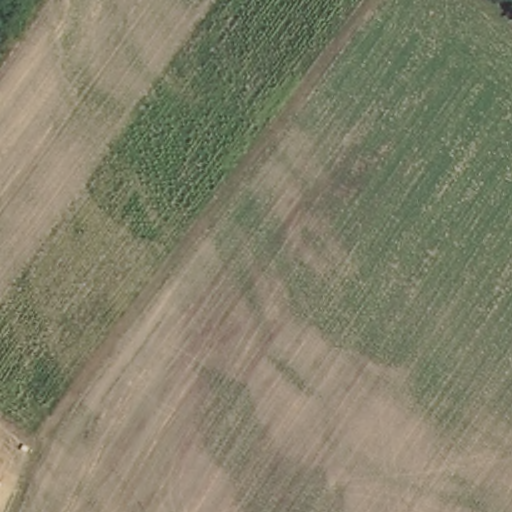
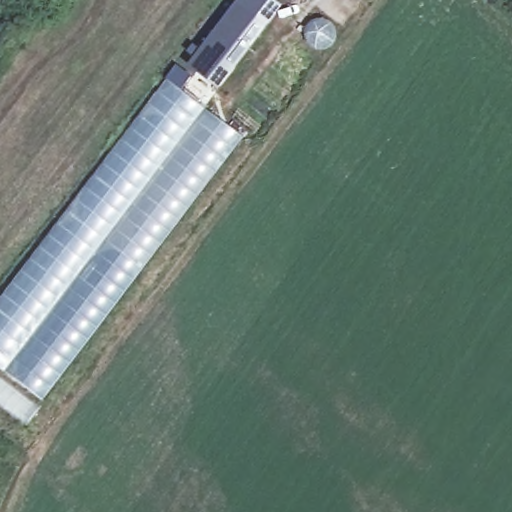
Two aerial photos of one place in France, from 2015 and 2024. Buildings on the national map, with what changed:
new [(243,0),(269,0),(273,4),(259,24),(216,82),(195,65),(238,7),(243,0)]
new [(244,136),(43,401),(0,368),(0,298),(165,79),(244,136)]

